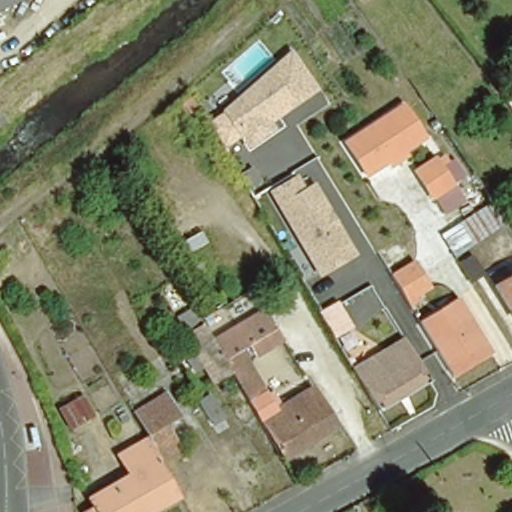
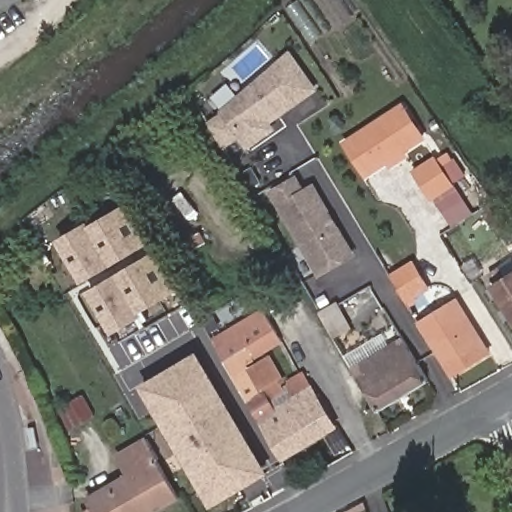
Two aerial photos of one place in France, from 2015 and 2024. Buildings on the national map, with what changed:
unchanged [(0,9),(0,0),(19,0),(0,9)]
unchanged [(315,95),(274,119),(273,117),(262,123),(266,130),(241,145),(217,106),(291,59),(315,95)]
unchanged [(403,149),(408,156),(388,168),(384,162),(360,177),(337,142),(397,102),(420,135),(403,149)]
unchanged [(427,200),(409,170),(431,155),(449,186),(427,200)]
unchanged [(296,190),(305,184),(322,212),(320,214),(326,225),(329,223),(345,251),(313,271),(265,191),(288,177),(296,190)]
unchanged [(440,234),(459,222),(492,199),(494,202),(508,222),(473,245),(454,257),(440,234)]
new [(56,240),(122,205),(125,209),(130,206),(151,242),(81,283),(56,240)]
unchanged [(401,244),(417,269),(421,276),(393,293),(389,286),(376,265),(374,261),(401,244)]
new [(177,284),(171,287),(174,293),(152,306),(143,316),(111,335),(86,293),(157,251),(177,284)]
unchanged [(472,252),(484,273),(470,282),(462,270),(457,261),(472,252)]
unchanged [(500,268),(512,261),(512,312),(487,277),(500,268)]
unchanged [(334,297),(348,320),(323,335),(311,315),(309,312),(334,297)]
unchanged [(457,301),(488,352),(482,356),(450,377),(432,348),(418,325),(452,304),(457,301)]
demolished [(211,380),(202,366),(193,371),(183,355),(193,349),(184,334),(185,333),(176,316),(191,308),(199,322),(199,323),(200,324),(210,341),(217,353),(223,362),(223,363),(228,371),(211,380)]
unchanged [(228,371),(223,363),(223,362),(217,353),(210,341),(262,311),(283,344),(255,360),(248,348),(243,350),(264,389),(261,391),(273,410),(310,389),(331,425),(279,457),(228,371)]
unchanged [(351,375),(346,366),(398,335),(423,376),(371,407),(351,375)]
new [(210,508),(138,386),(196,353),(267,474),(210,508)]
demolished [(156,458),(144,438),(130,413),(163,393),(177,417),(162,425),(177,450),(158,461),(156,458)]
demolished [(223,417),(210,424),(198,400),(210,393),(223,417)]
unchanged [(73,430),(61,408),(84,395),(96,416),(73,430)]
unchanged [(175,498),(152,512),(82,512),(87,508),(83,500),(126,474),(114,455),(144,438),(156,458),(153,459),(175,498)]

